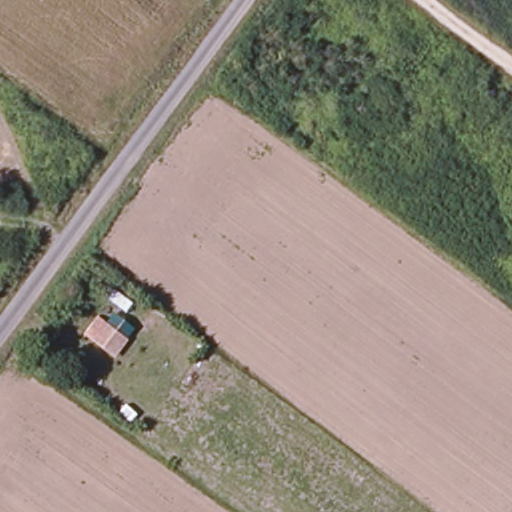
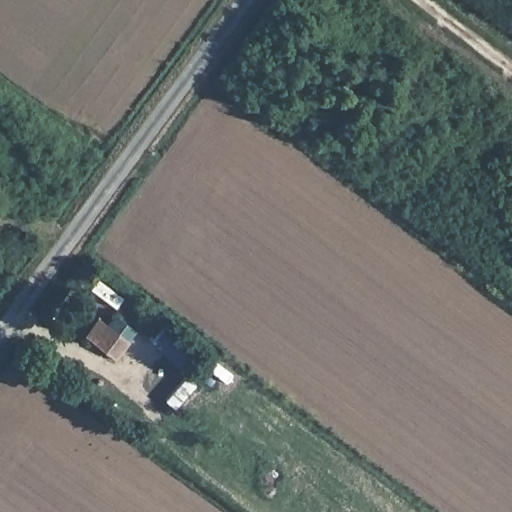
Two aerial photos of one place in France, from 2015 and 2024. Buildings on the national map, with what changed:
unchanged [(83,342),(98,323),(126,347),(111,365),(83,342)]

